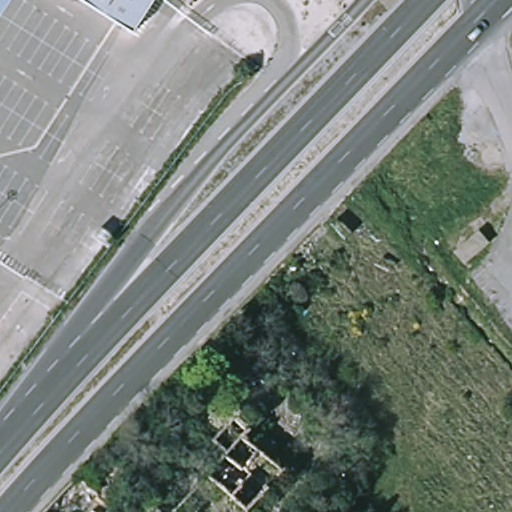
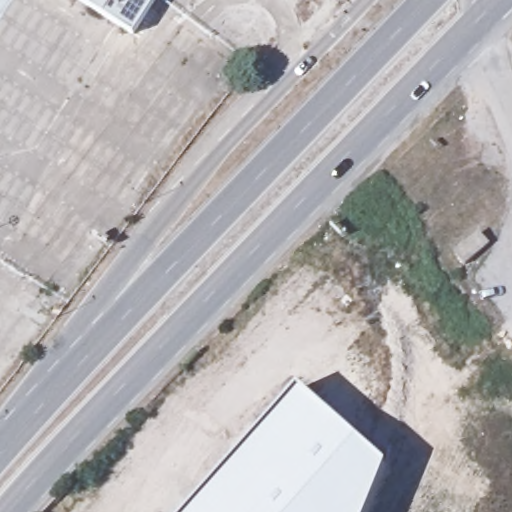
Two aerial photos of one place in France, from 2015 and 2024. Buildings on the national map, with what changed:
unchanged [(155,0),(133,35),(122,28),(87,6),(78,0),(155,0)]
unchanged [(460,247),(482,227),(492,239),(470,259),(460,247)]
new [(388,469),(370,512),(192,512),(298,393),(388,469)]

